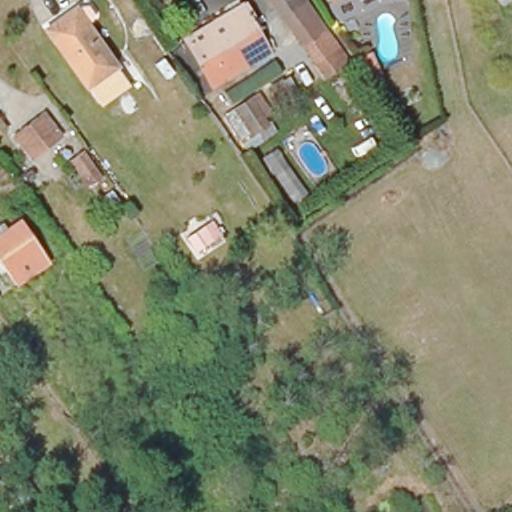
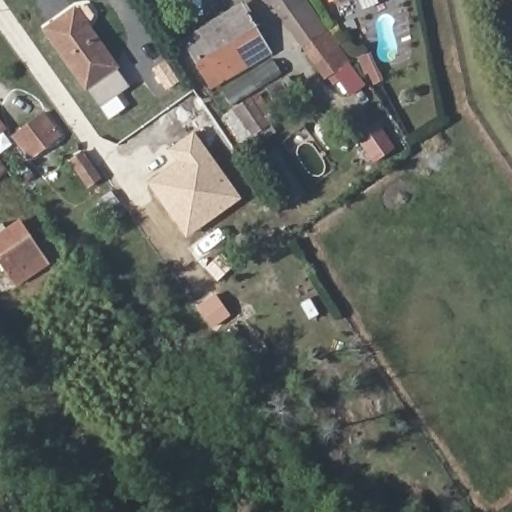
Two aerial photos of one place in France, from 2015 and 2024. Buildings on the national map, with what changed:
unchanged [(338,85),(315,44),(307,49),(270,0),(303,0),(328,35),(353,77),(338,85)]
unchanged [(328,5),(326,0),(339,0),(328,5)]
unchanged [(48,28),(77,8),(119,65),(90,86),(48,28)]
unchanged [(184,41),(206,27),(209,31),(242,11),(263,45),(209,77),(184,41)]
unchanged [(263,92),(282,80),(292,98),(275,110),(263,92)]
unchanged [(260,93),(272,116),(244,135),(228,109),(260,93)]
unchanged [(40,107),(56,128),(25,152),(9,130),(40,107)]
new [(194,130),(242,198),(186,238),(146,181),(177,160),(170,149),(194,130)]
unchanged [(307,191),(290,203),(260,159),(276,147),(307,191)]
unchanged [(71,158),(82,150),(99,174),(88,182),(71,158)]
unchanged [(12,163),(22,156),(31,168),(20,175),(12,163)]
unchanged [(14,182),(0,192),(0,162),(14,182)]
unchanged [(16,262),(5,269),(0,263),(0,231),(19,218),(48,258),(25,275),(16,262)]

